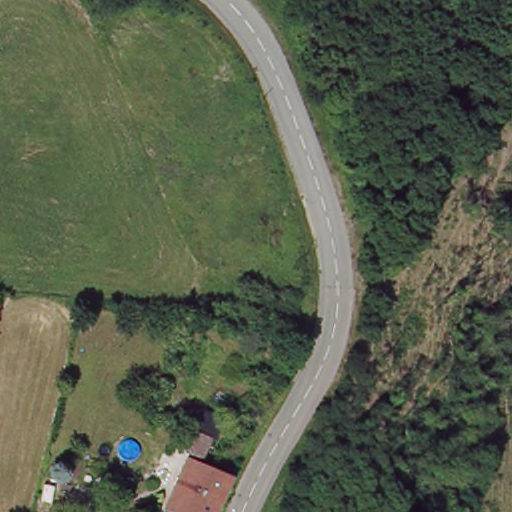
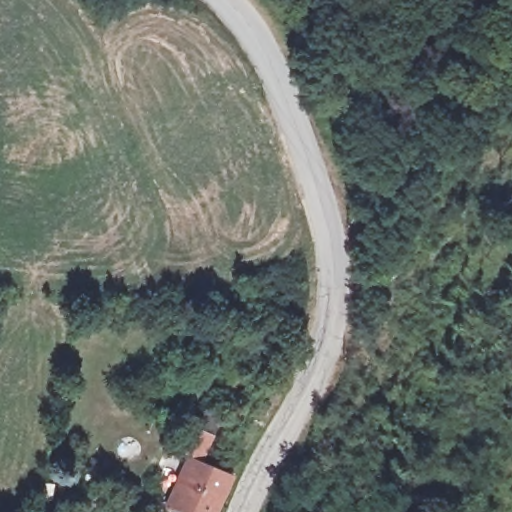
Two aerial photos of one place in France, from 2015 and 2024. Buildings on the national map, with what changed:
unchanged [(193,426),(210,433),(200,462),(232,472),(219,512),(183,512),(160,503),(193,426)]

